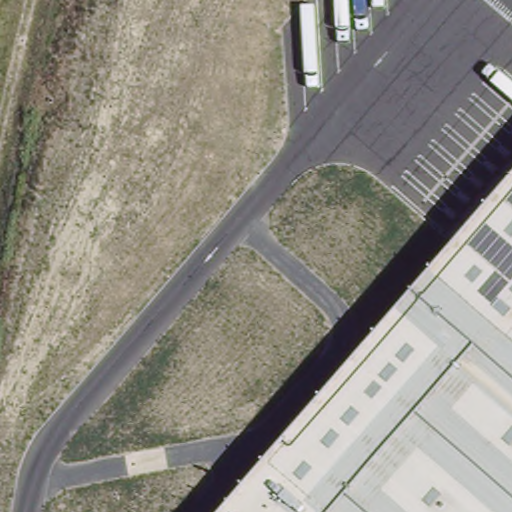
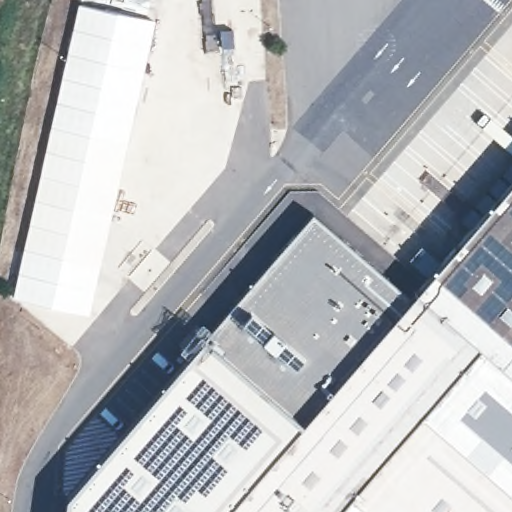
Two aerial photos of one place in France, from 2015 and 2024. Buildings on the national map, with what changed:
new [(155,21),(90,313),(13,298),(79,5),(155,21)]
unchanged [(512,185),(512,512),(230,512),(512,185)]
new [(67,498),(205,340),(313,215),(414,299),(230,512),(65,512),(67,498)]

